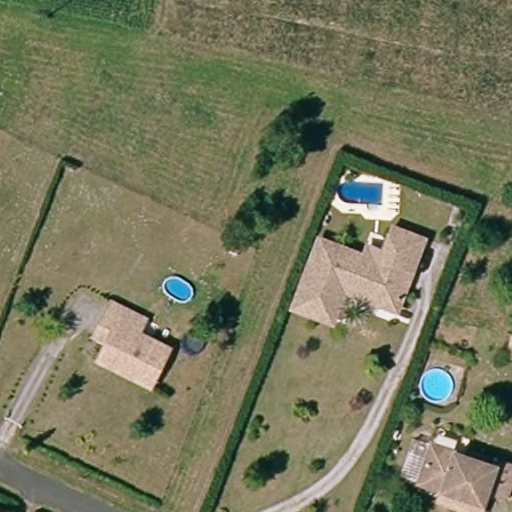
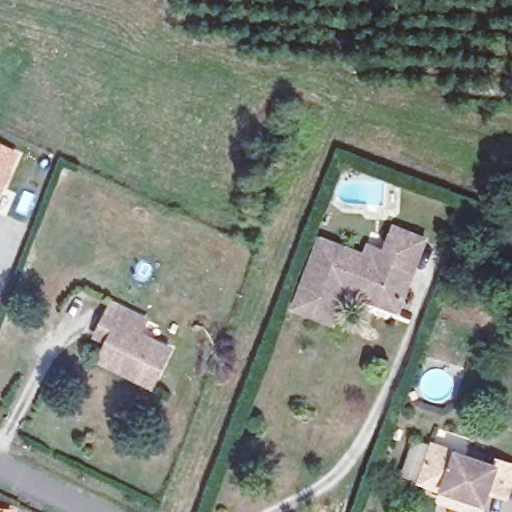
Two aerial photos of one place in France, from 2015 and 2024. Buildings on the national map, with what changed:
new [(20,155),(0,197),(0,146),(20,155)]
unchanged [(426,237),(402,307),(352,291),(341,323),(301,309),(324,241),(369,256),(372,245),(387,249),(395,228),(426,237)]
unchanged [(152,312),(146,326),(176,341),(159,378),(107,353),(117,332),(105,326),(112,311),(119,296),(152,312)]
unchanged [(424,483),(437,446),(500,469),(502,463),(512,467),(512,493),(510,500),(492,494),(485,512),(470,512),(452,505),(442,502),(446,492),(424,483)]

